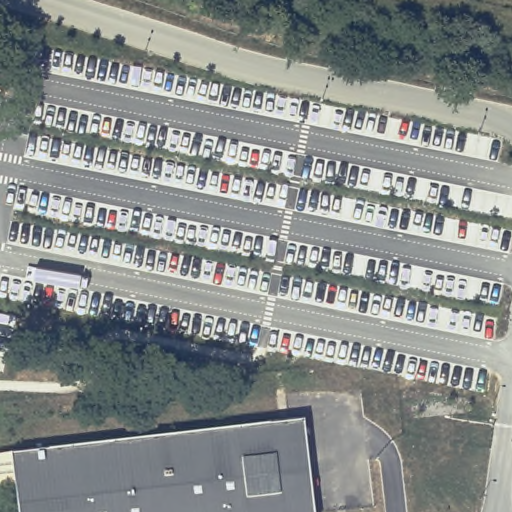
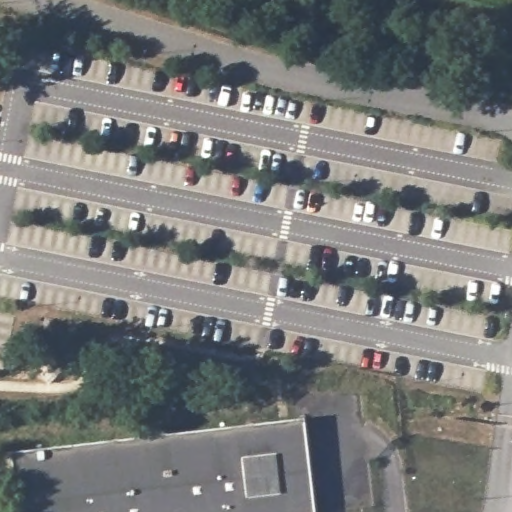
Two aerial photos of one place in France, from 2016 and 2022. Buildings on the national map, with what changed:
unchanged [(300,418),(310,512),(29,512),(22,453),(300,418)]

